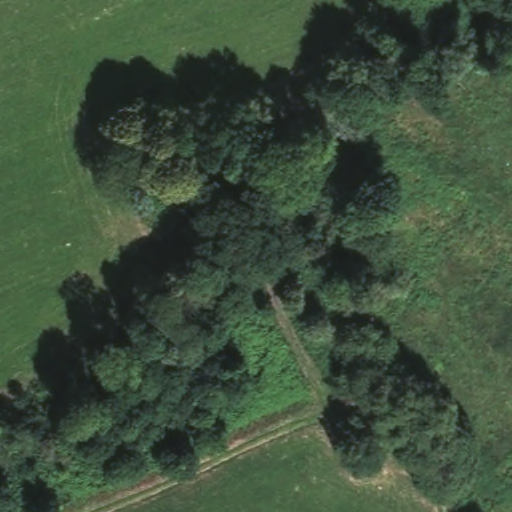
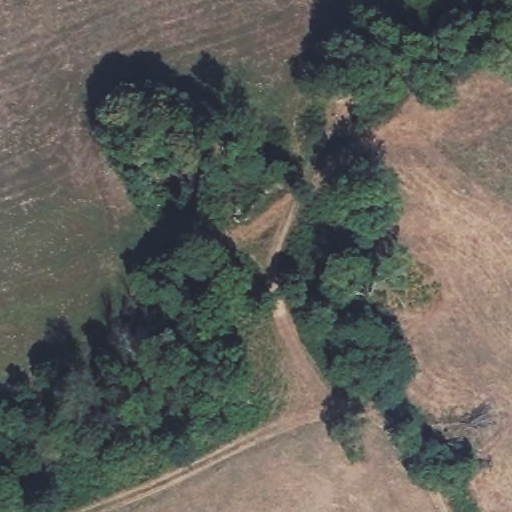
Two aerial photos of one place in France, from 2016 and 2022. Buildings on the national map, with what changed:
unchanged [(0,407),(0,374),(40,351),(56,377),(0,407)]

